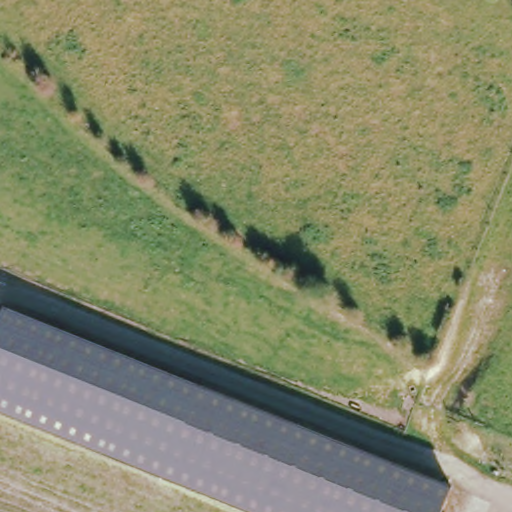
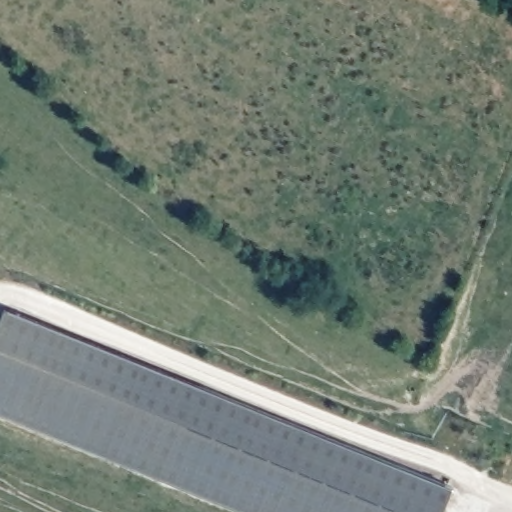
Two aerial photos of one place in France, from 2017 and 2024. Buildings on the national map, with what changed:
unchanged [(453,485),(442,512),(247,512),(0,413),(0,315),(4,306),(453,485)]

